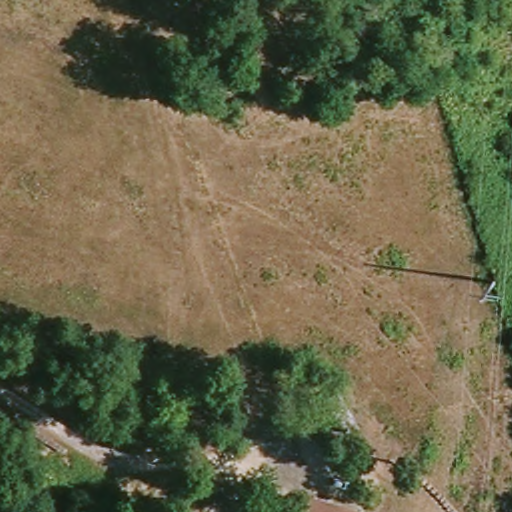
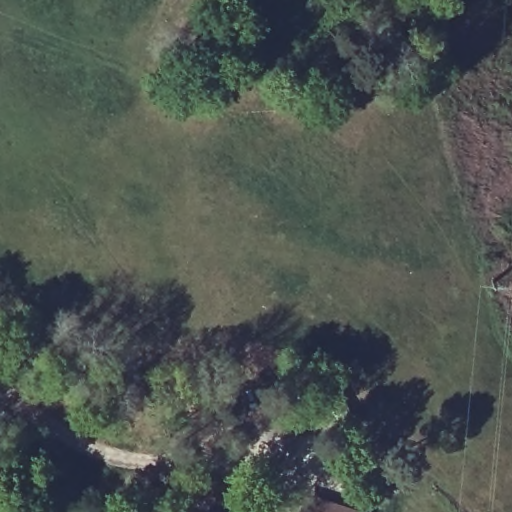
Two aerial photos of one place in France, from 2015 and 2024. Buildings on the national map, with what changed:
unchanged [(358,512),(300,512),(305,495),(358,512)]

